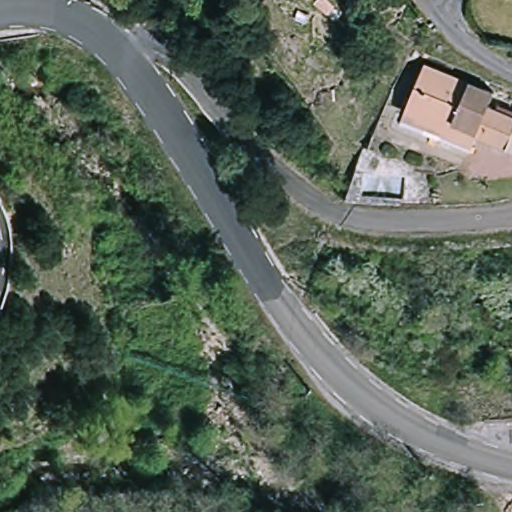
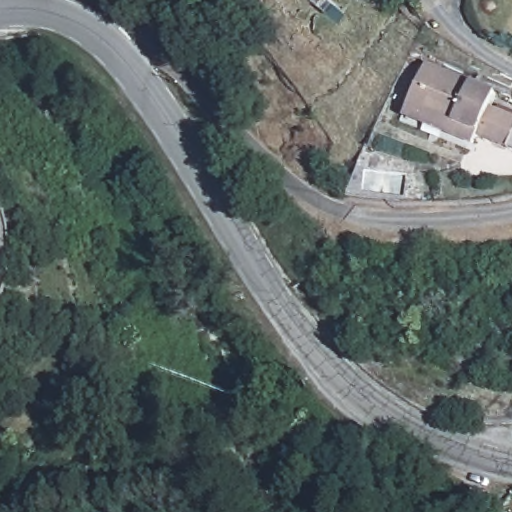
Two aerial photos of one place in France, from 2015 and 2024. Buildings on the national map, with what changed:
unchanged [(478,137),(475,142),(448,132),(400,115),(404,105),(422,62),(497,88),(491,104),(512,112),(512,148),(507,147),(478,137)]
unchanged [(327,307),(342,295),(359,315),(346,328),(327,307)]

